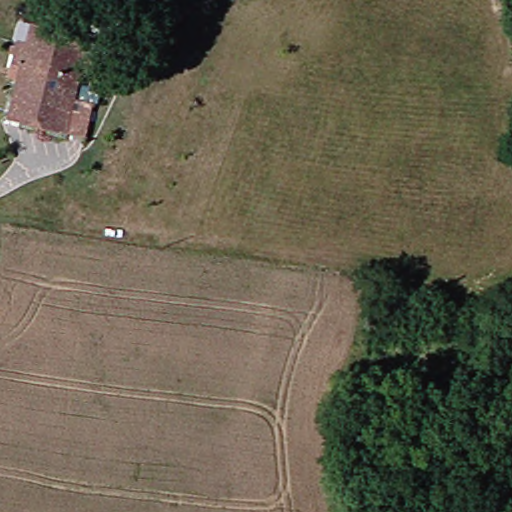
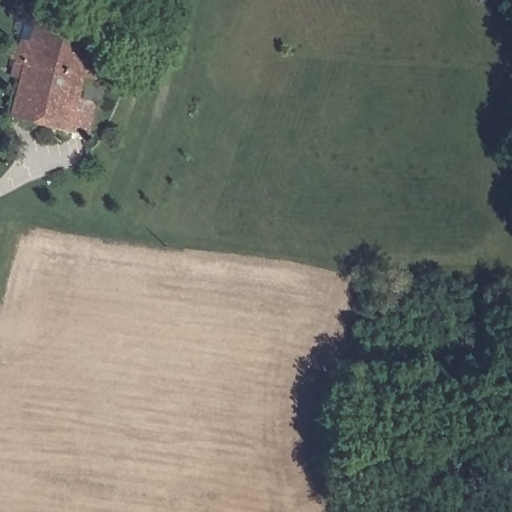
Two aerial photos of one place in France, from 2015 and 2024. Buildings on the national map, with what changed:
unchanged [(90,38),(89,59),(85,58),(76,99),(79,100),(78,106),(73,106),(69,129),(21,118),(20,122),(15,121),(15,116),(10,114),(22,61),(15,59),(25,23),(90,38)]

